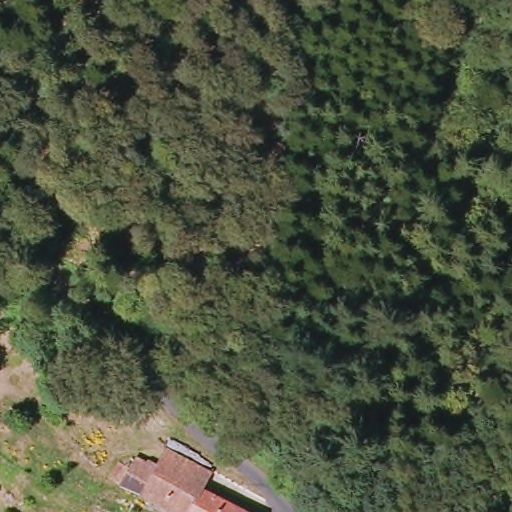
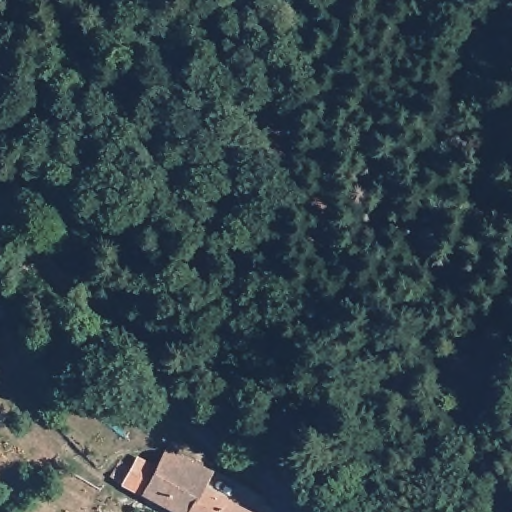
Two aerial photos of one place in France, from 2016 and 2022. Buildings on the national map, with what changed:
unchanged [(121,470),(133,478),(139,466),(157,476),(171,452),(212,474),(207,492),(245,512),(163,512),(111,488),(121,470)]

